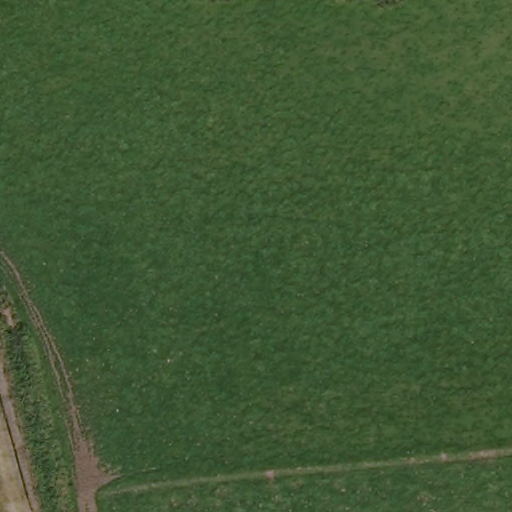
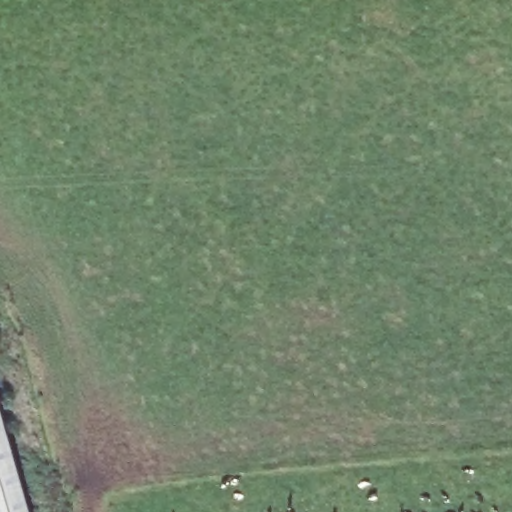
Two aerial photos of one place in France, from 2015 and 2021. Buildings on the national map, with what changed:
new [(0,412),(28,512),(0,512),(0,412)]

